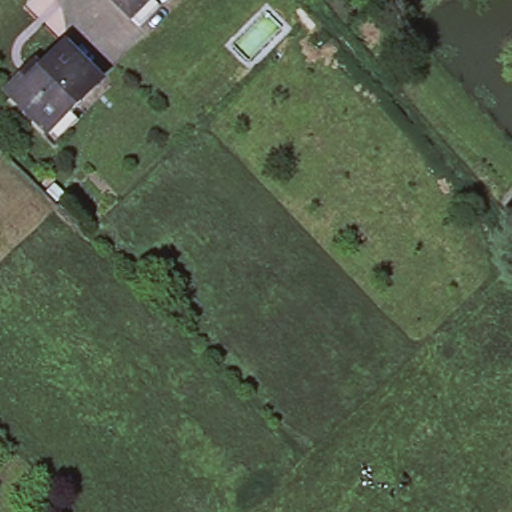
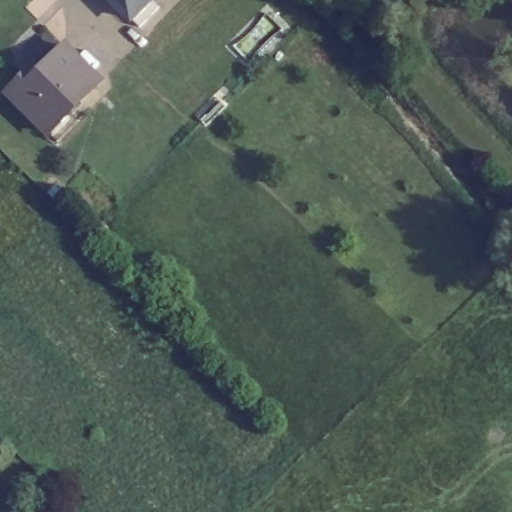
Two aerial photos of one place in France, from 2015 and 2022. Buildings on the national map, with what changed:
unchanged [(140,32),(130,22),(107,0),(153,0),(150,3),(160,12),(140,32)]
unchanged [(55,142),(46,132),(4,91),(21,74),(32,63),(38,70),(64,44),(99,80),(67,111),(77,120),(55,142)]

